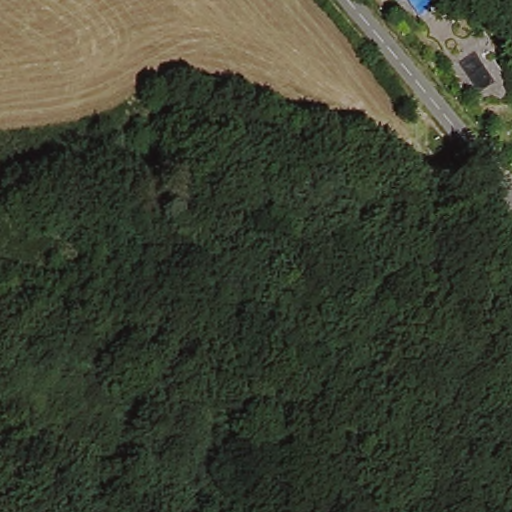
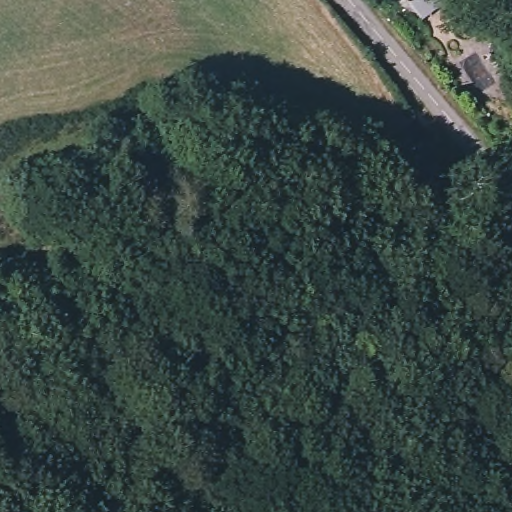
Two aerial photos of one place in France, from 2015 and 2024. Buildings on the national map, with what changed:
unchanged [(405,3),(402,0),(409,0),(405,3)]

